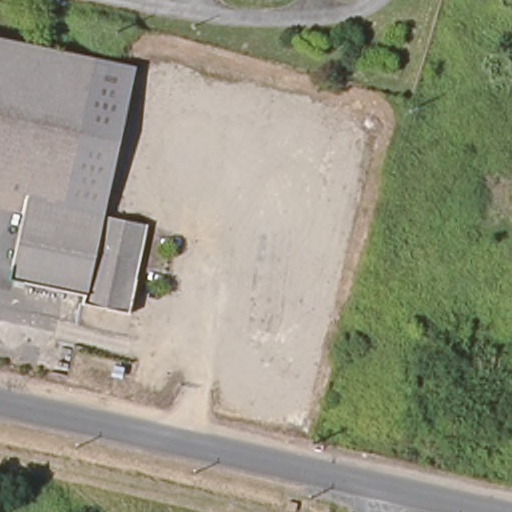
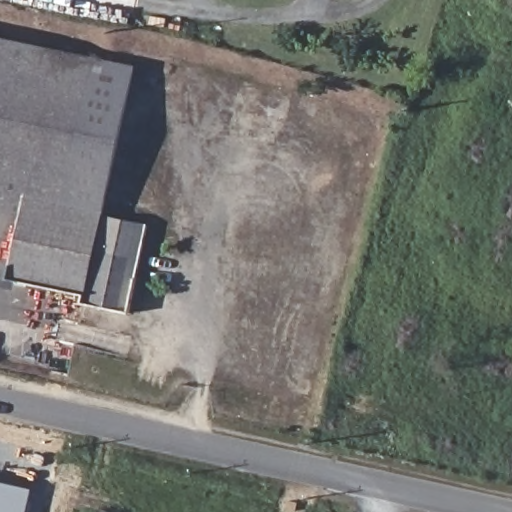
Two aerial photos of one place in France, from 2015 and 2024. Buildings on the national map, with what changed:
unchanged [(0,195),(0,42),(97,62),(67,209),(32,201),(0,195)]
unchanged [(97,62),(137,70),(109,220),(155,226),(138,315),(92,305),(94,296),(16,282),(32,201),(67,209),(97,62)]
new [(27,512),(0,512),(0,481),(33,488),(27,512)]

